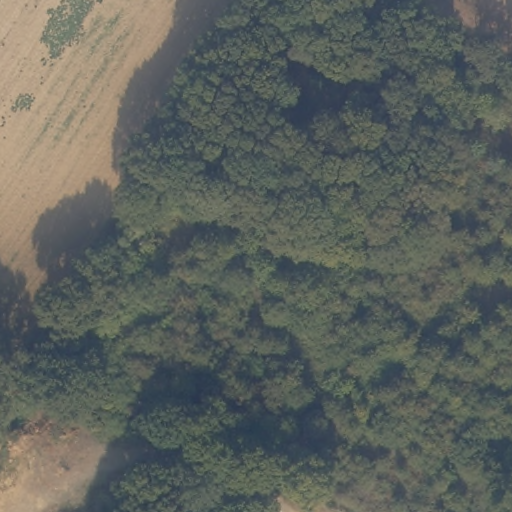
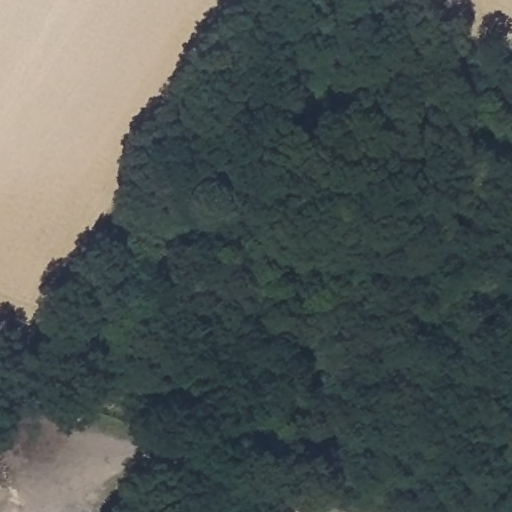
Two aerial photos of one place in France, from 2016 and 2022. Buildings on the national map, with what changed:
[]

